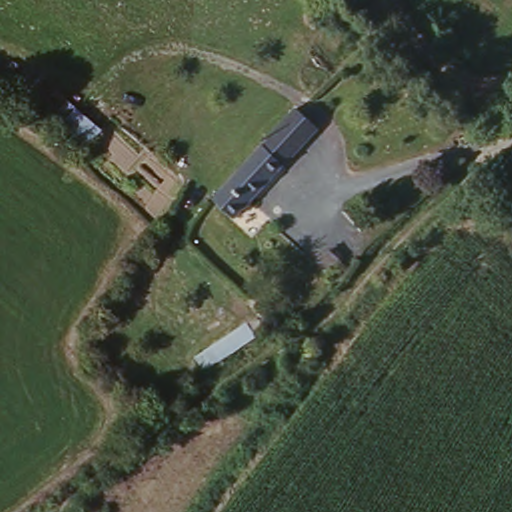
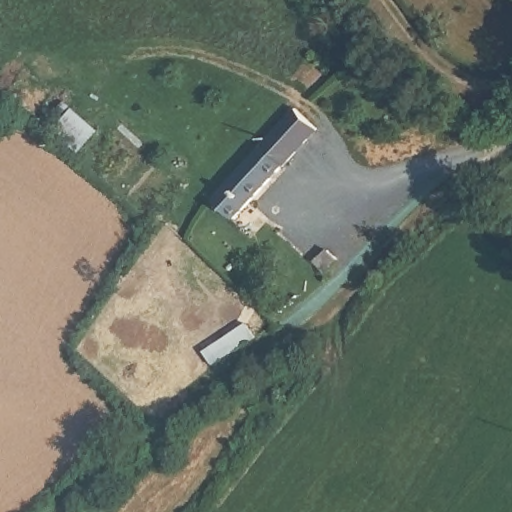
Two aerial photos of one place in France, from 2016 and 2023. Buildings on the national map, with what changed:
unchanged [(79,151),(48,121),(70,102),(101,130),(79,151)]
unchanged [(296,105),(320,130),(292,161),(266,135),(296,105)]
unchanged [(292,161),(232,225),(205,203),(266,135),(292,161)]
unchanged [(324,255),(337,268),(322,282),(309,270),(324,255)]
unchanged [(249,321),(258,337),(206,370),(196,356),(249,321)]

